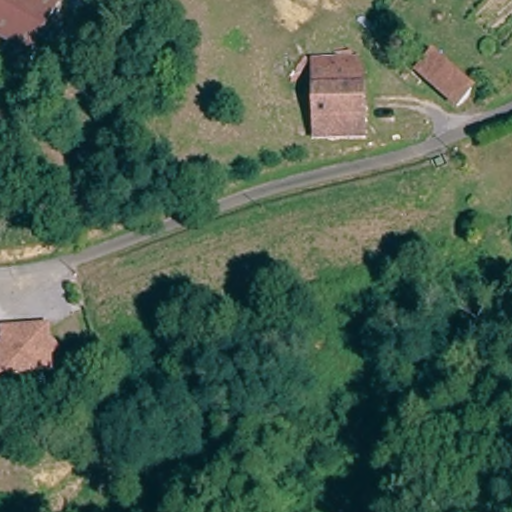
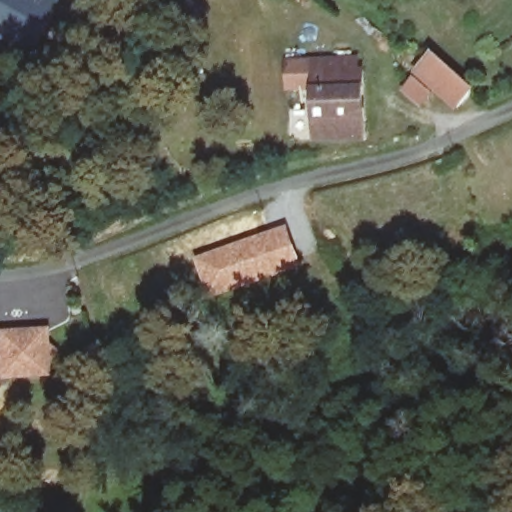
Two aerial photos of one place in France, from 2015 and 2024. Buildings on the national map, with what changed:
unchanged [(64,4),(35,57),(0,38),(0,0),(56,0),(64,4)]
unchanged [(363,118),(311,123),(309,71),(322,71),(323,59),(345,59),(346,70),(361,70),(363,118)]
unchanged [(468,90),(457,104),(421,76),(432,62),(468,90)]
unchanged [(363,118),(364,140),(312,145),(311,123),(363,118)]
new [(275,242),(291,236),(300,264),(211,295),(198,259),(270,232),(275,242)]
unchanged [(3,346),(3,334),(53,330),(55,345),(65,351),(57,359),(57,380),(5,381),(5,393),(0,393),(0,346),(3,346)]

